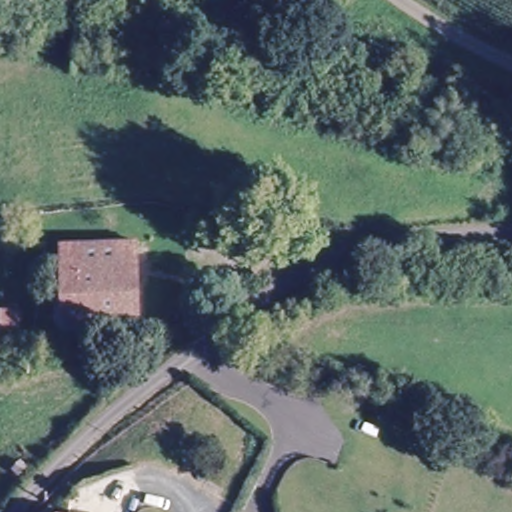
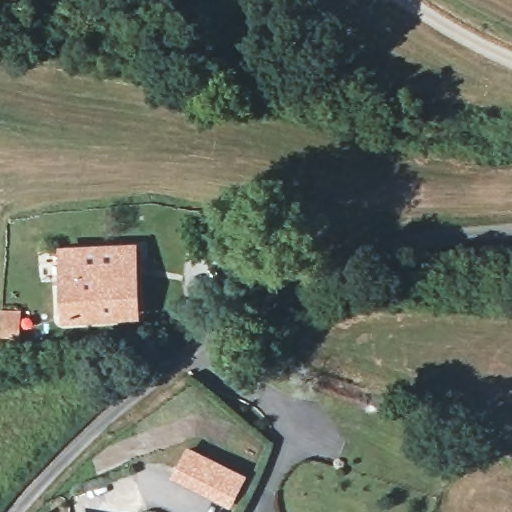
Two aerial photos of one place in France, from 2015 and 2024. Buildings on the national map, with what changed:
unchanged [(134,316),(54,314),(55,240),(136,244),(134,316)]
unchanged [(0,347),(0,305),(17,305),(17,347),(0,347)]
new [(247,475),(232,508),(171,479),(185,444),(247,475)]

